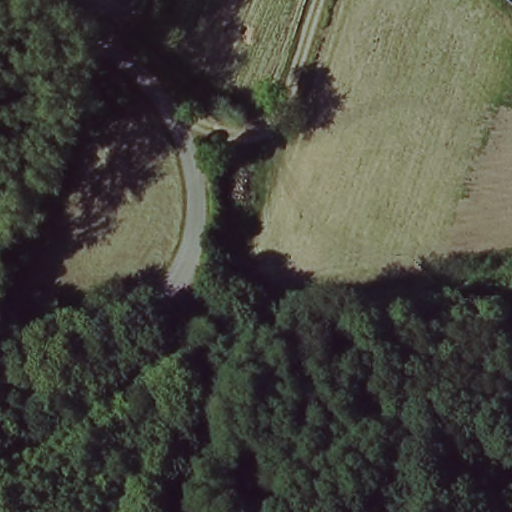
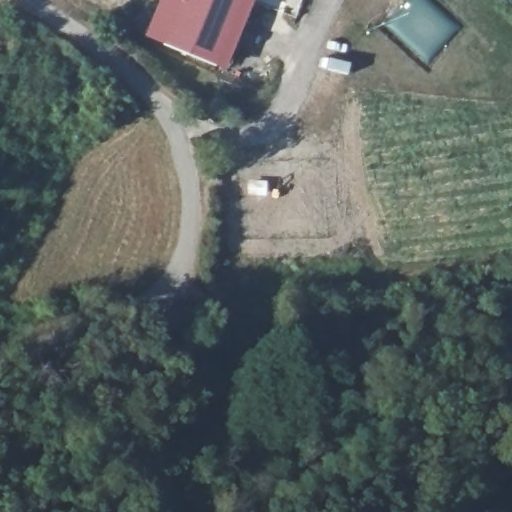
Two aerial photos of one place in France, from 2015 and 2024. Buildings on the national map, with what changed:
new [(185,0),(246,0),(220,66),(168,45),(185,0)]

